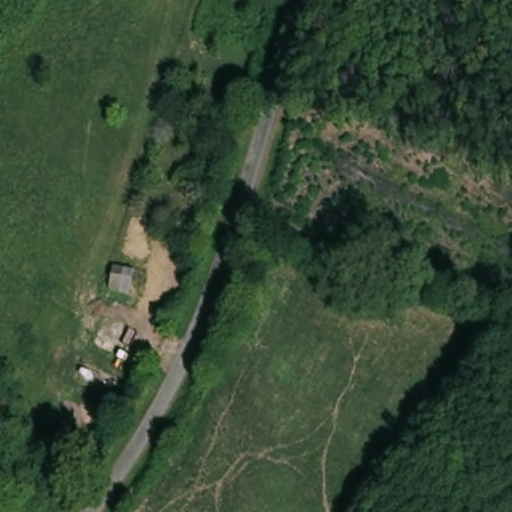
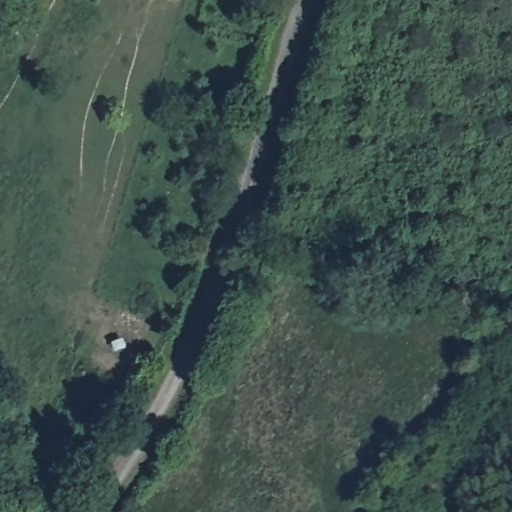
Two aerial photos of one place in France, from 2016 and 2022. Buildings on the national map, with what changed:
[]

